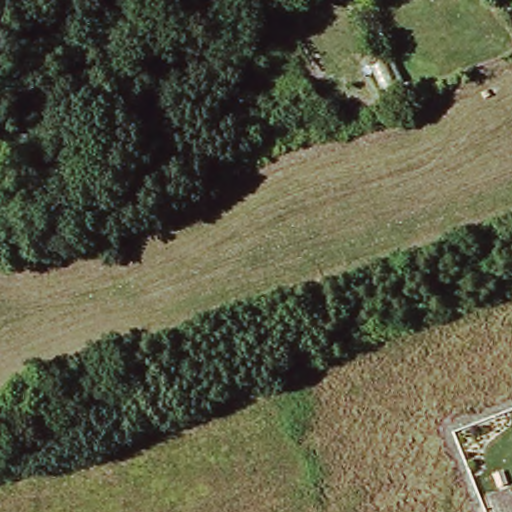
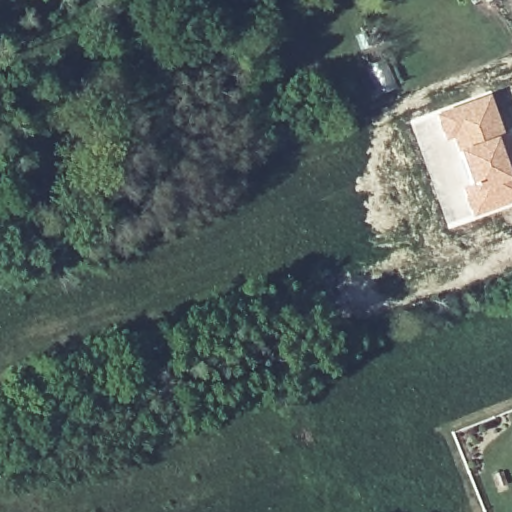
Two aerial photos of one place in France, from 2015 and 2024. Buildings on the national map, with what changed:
new [(503,134),(496,136),(511,177),(512,177),(512,202),(472,216),(461,189),(469,186),(451,140),(444,142),(434,112),(489,92),(503,134)]

